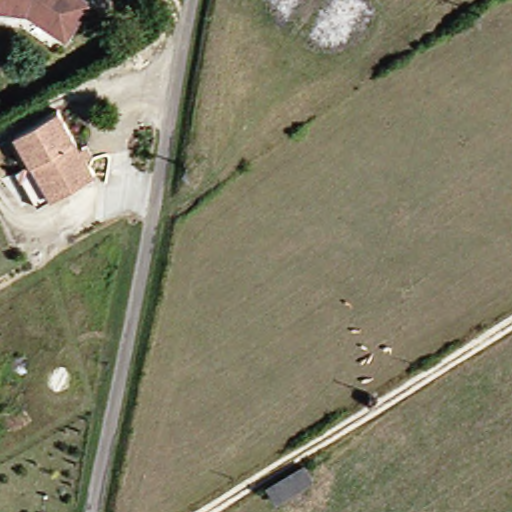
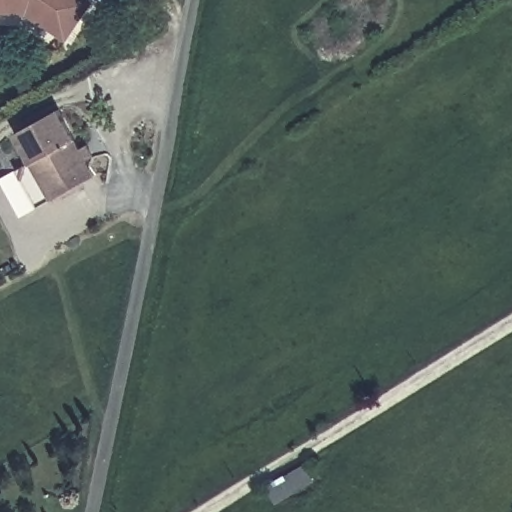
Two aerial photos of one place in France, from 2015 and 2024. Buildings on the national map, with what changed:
unchanged [(76,32),(38,7),(0,3),(0,0),(97,0),(76,32)]
unchanged [(90,186),(47,209),(11,143),(54,120),(90,186)]

